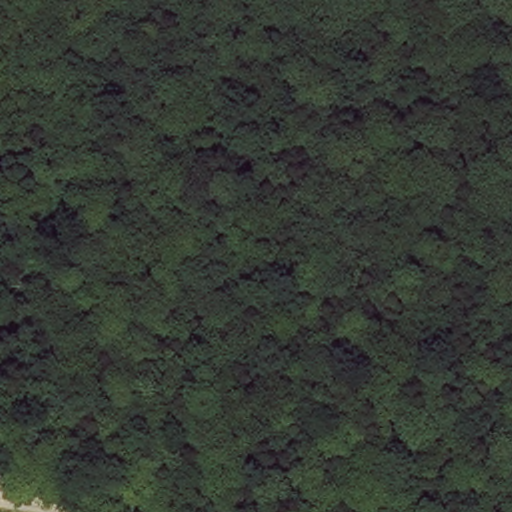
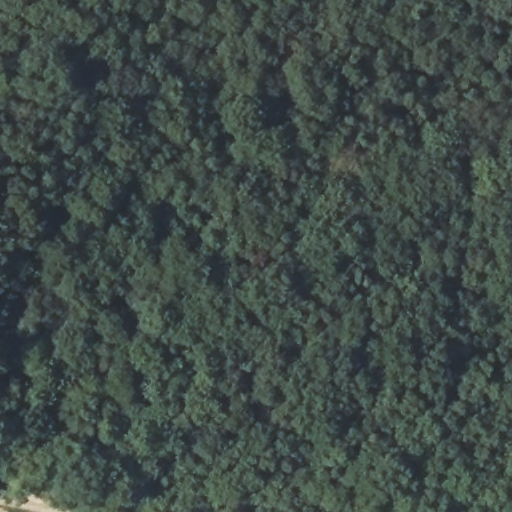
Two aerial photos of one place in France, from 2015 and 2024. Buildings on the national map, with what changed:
[]

